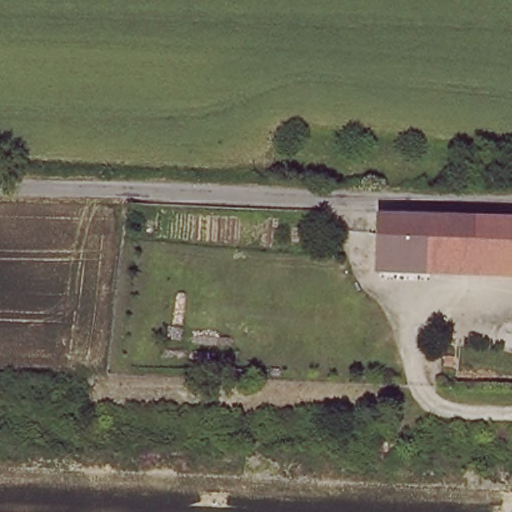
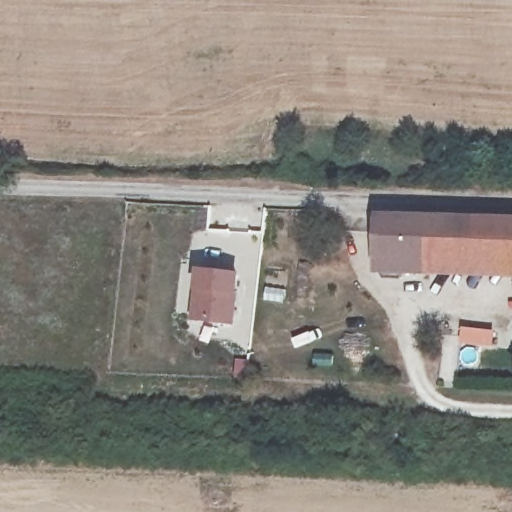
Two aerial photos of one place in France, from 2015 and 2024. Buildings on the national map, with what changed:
unchanged [(361,255),(362,216),(390,217),(390,219),(385,256),(361,255)]
unchanged [(390,219),(512,222),(512,264),(385,256),(390,219)]
new [(191,321),(194,290),(196,269),(240,274),(237,292),(234,325),(191,321)]

